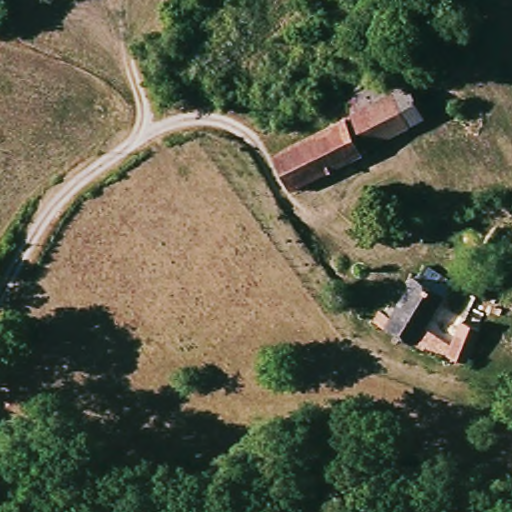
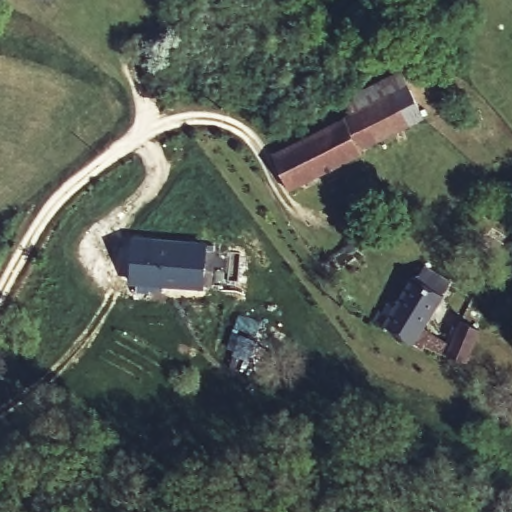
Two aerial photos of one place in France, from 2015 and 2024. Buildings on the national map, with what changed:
unchanged [(378,146),(304,187),(287,154),(296,144),(373,104),(399,88),(415,115),(387,130),(373,138),(378,146)]
new [(130,235),(207,241),(204,291),(126,285),(130,235)]
unchanged [(418,346),(387,325),(383,330),(372,325),(381,312),(386,316),(415,271),(419,272),(424,266),(447,282),(419,321),(429,327),(418,346)]

